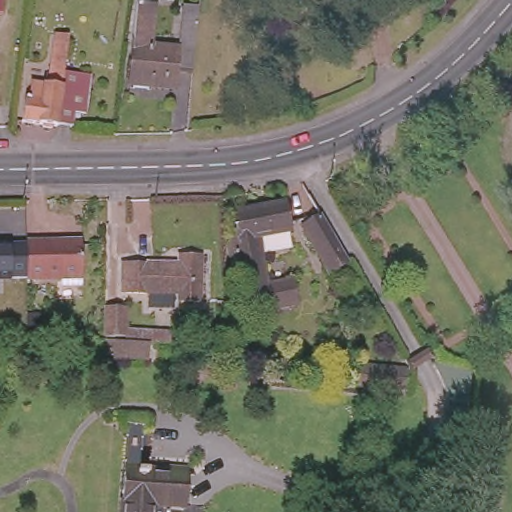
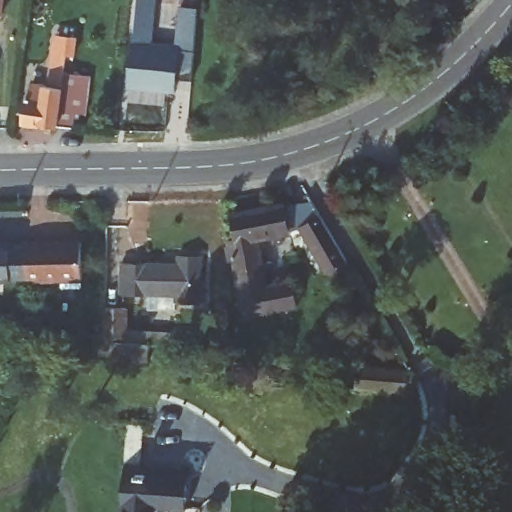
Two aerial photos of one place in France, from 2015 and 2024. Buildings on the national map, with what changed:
unchanged [(199,11),(192,75),(177,74),(175,93),(129,88),(138,6),(155,9),(152,49),(180,52),(185,10),(199,11)]
unchanged [(67,44),(62,79),(87,81),(84,120),(72,118),(69,135),(21,129),(25,106),(27,107),(30,90),(46,92),(54,41),(67,44)]
unchanged [(277,204),(282,229),(260,233),(262,247),(269,281),(294,277),(299,302),(237,313),(231,268),(226,234),(232,232),(228,213),(277,204)]
unchanged [(343,270),(329,278),(318,259),(310,245),(304,235),(317,226),(343,270)]
unchanged [(200,297),(179,296),(179,290),(175,290),(174,306),(146,305),(147,290),(120,290),(120,258),(180,259),(180,252),(203,252),(200,297)]
unchanged [(80,255),(82,298),(62,299),(61,290),(27,292),(26,290),(26,274),(25,267),(25,258),(25,256),(80,255)]
unchanged [(26,274),(26,290),(0,291),(0,259),(25,258),(25,267),(26,274)]
unchanged [(125,305),(125,328),(157,330),(156,343),(104,339),(104,305),(125,305)]
unchanged [(357,364),(407,368),(407,380),(406,388),(355,385),(357,364)]
unchanged [(162,463),(164,458),(190,460),(186,501),(155,499),(154,512),(122,512),(130,416),(145,417),(142,462),(162,463)]

